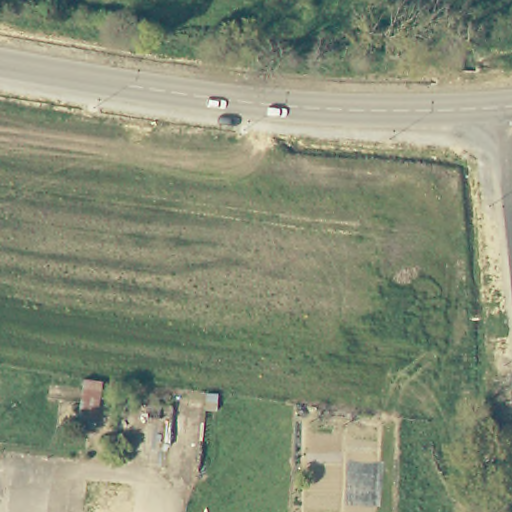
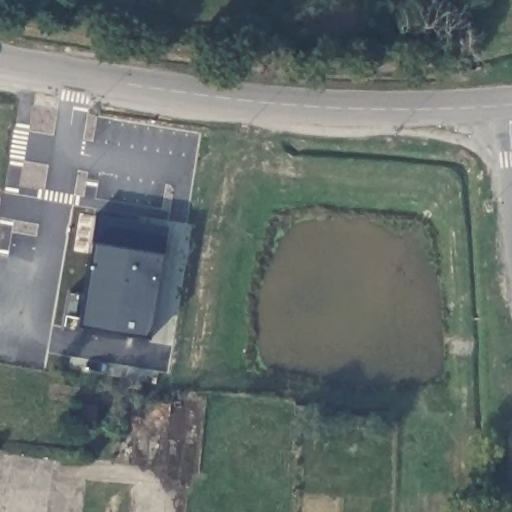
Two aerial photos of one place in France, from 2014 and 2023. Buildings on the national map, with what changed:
new [(168,227),(150,340),(78,330),(96,217),(168,227)]

